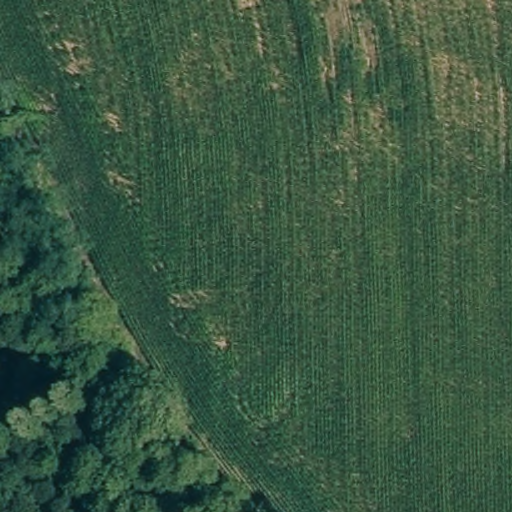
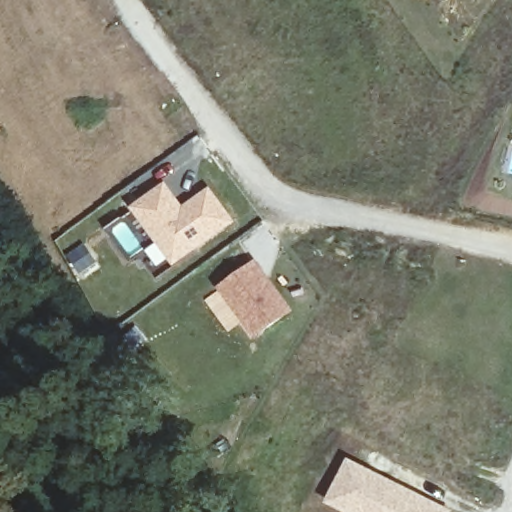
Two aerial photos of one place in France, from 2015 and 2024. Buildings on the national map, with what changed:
new [(165,181),(183,205),(209,187),(235,222),(174,268),(169,261),(158,269),(145,252),(156,244),(130,207),(165,181)]
new [(81,243),(96,264),(79,276),(64,256),(81,243)]
new [(254,260),(294,312),(253,342),(239,324),(228,333),(204,300),(254,260)]
new [(134,322),(149,343),(126,360),(110,338),(134,322)]
new [(347,458),(452,511),(451,512),(344,512),(325,502),(347,458)]

